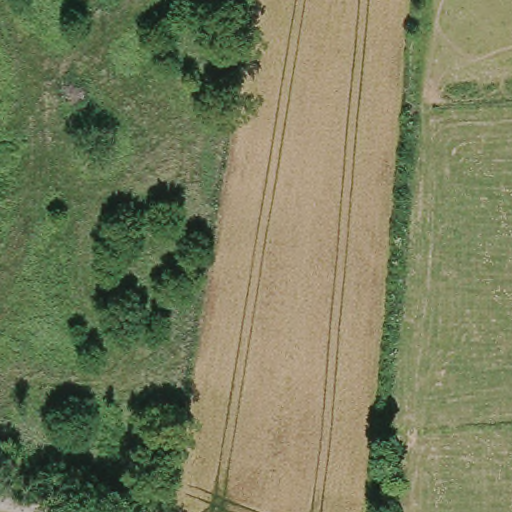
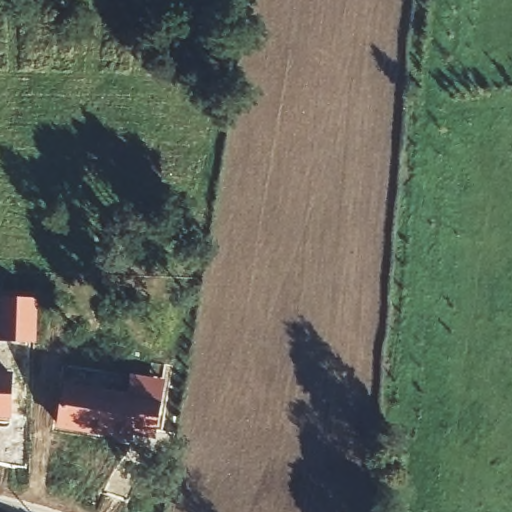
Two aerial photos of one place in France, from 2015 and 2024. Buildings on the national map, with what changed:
new [(37,298),(35,339),(0,337),(0,327),(1,297),(37,298)]
new [(11,372),(10,414),(0,413),(0,371),(11,372)]
new [(66,383),(130,394),(132,380),(133,375),(163,380),(162,386),(154,435),(132,432),(130,437),(59,424),(66,383)]

